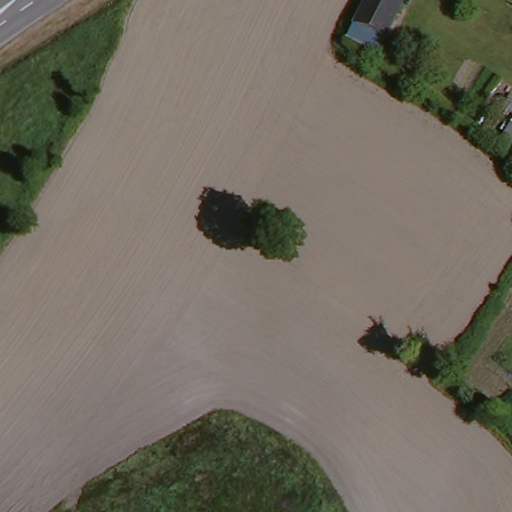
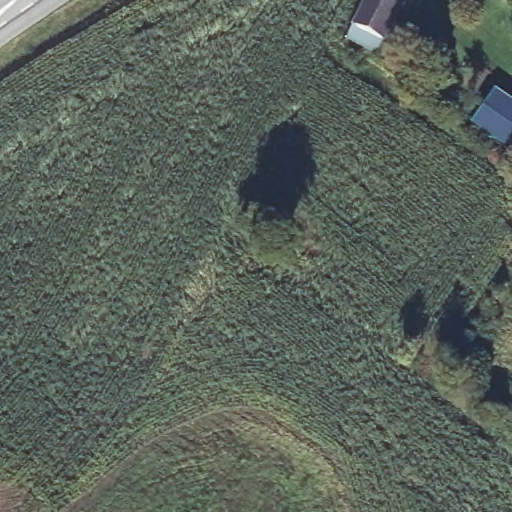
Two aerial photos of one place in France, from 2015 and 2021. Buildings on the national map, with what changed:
unchanged [(356,21),(367,0),(406,0),(388,37),(356,21)]
new [(512,102),(512,153),(471,125),(495,90),(512,102)]

